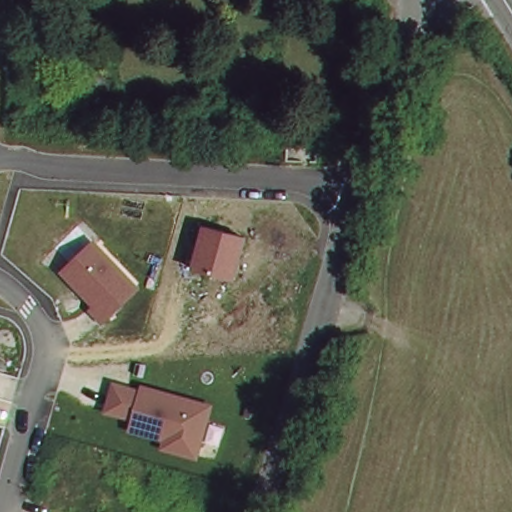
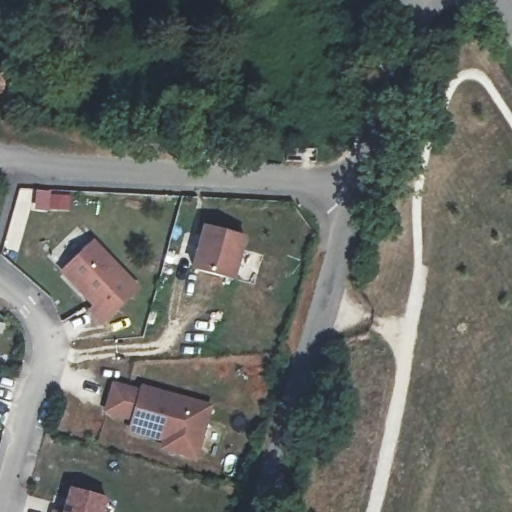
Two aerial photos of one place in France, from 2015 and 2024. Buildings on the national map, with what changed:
unchanged [(248,238),(237,281),(190,269),(205,227),(248,238)]
unchanged [(140,288),(101,323),(88,310),(91,307),(59,274),(95,241),(140,288)]
unchanged [(138,390),(141,385),(212,406),(199,461),(159,451),(160,442),(126,431),(128,421),(102,413),(112,383),(138,390)]
new [(107,497),(103,512),(61,512),(68,487),(107,497)]
new [(61,512),(49,512),(50,509),(61,512)]

